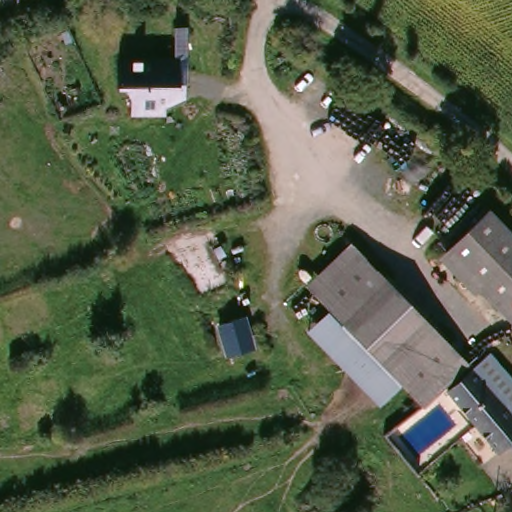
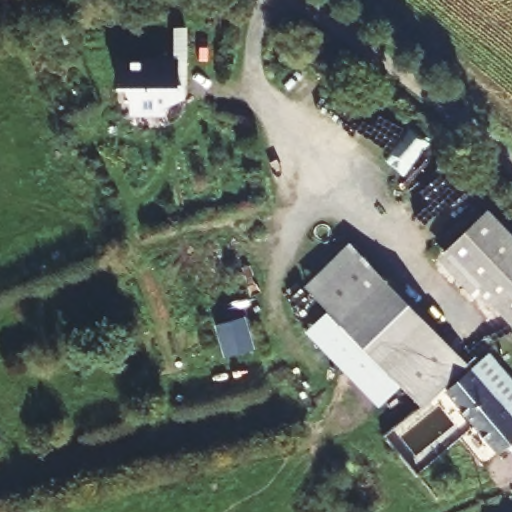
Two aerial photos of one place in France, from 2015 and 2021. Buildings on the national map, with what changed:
unchanged [(170,55),(170,25),(185,25),(184,96),(162,114),(131,113),(115,89),(113,54),(170,55)]
unchanged [(512,313),(450,247),(493,207),(512,228),(512,313)]
unchanged [(314,281),(358,242),(458,352),(412,391),(403,381),(335,304),(314,281)]
unchanged [(403,381),(380,402),(312,325),(335,304),(403,381)]
unchanged [(244,313),(252,349),(224,357),(215,321),(244,313)]
unchanged [(490,356),(512,382),(512,417),(472,371),(490,356)]
unchanged [(437,380),(458,365),(464,361),(472,371),(512,417),(512,442),(494,457),(437,380)]

